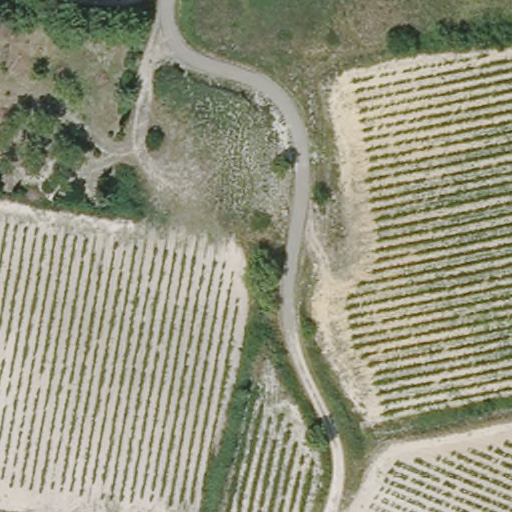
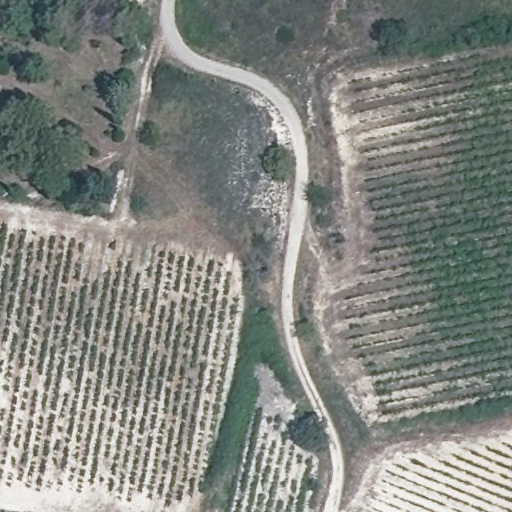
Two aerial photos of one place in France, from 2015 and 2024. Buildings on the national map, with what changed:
[]

